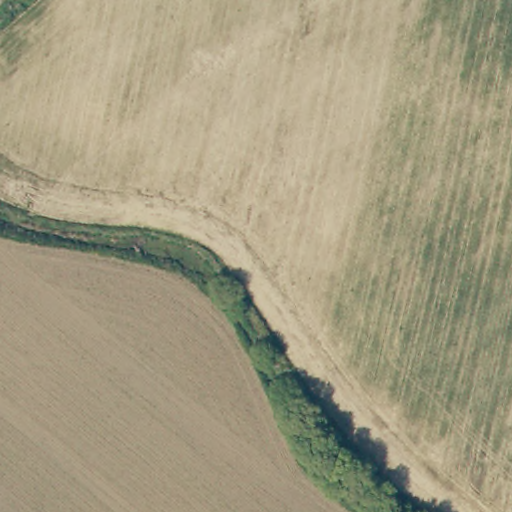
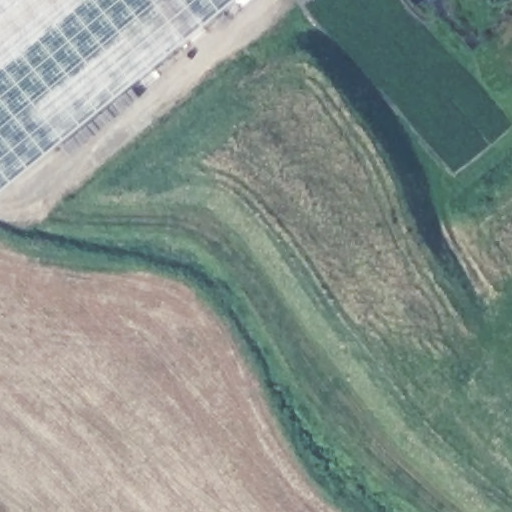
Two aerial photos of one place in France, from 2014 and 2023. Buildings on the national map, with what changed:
new [(0,0),(237,0),(0,195),(0,0)]

